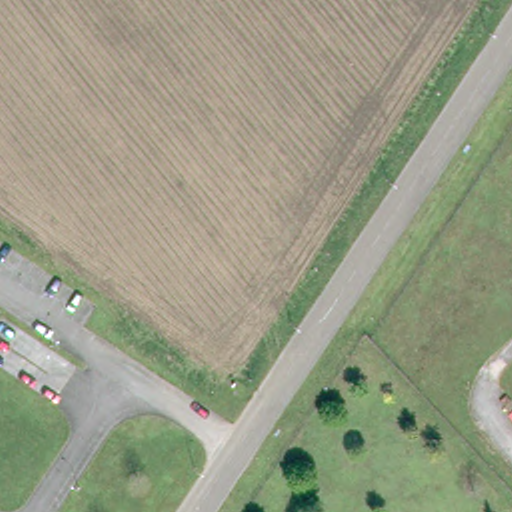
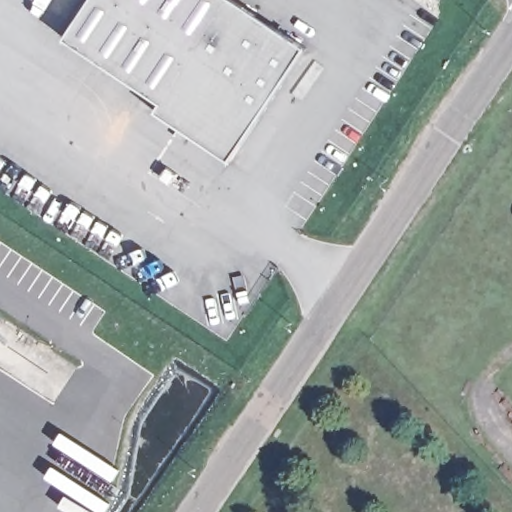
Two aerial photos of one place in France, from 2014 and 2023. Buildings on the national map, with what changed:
new [(230,161),(155,111),(160,103),(62,39),(89,0),(236,0),(307,47),(230,161)]

